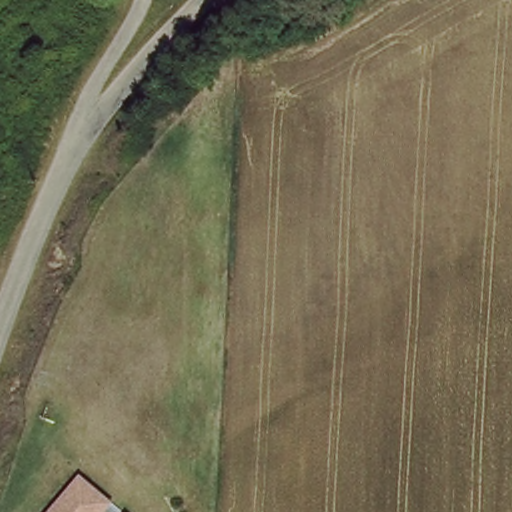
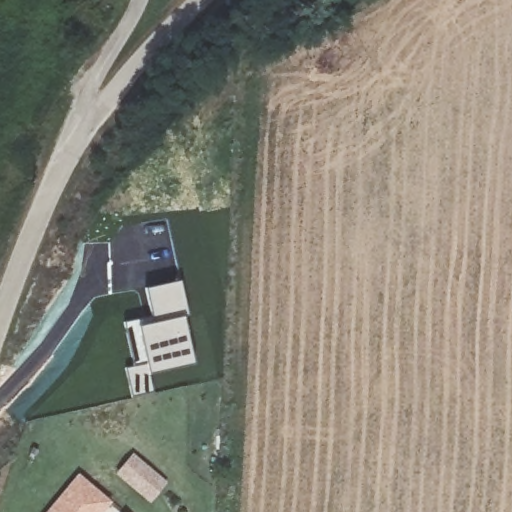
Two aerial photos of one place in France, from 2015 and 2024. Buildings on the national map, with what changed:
new [(181,279),(185,313),(151,320),(144,287),(181,279)]
new [(136,318),(137,322),(142,321),(151,320),(185,313),(196,365),(148,375),(144,360),(140,360),(129,320),(136,318)]
new [(133,452),(168,481),(150,502),(115,472),(133,452)]
unchanged [(119,512),(57,512),(82,479),(119,512)]

